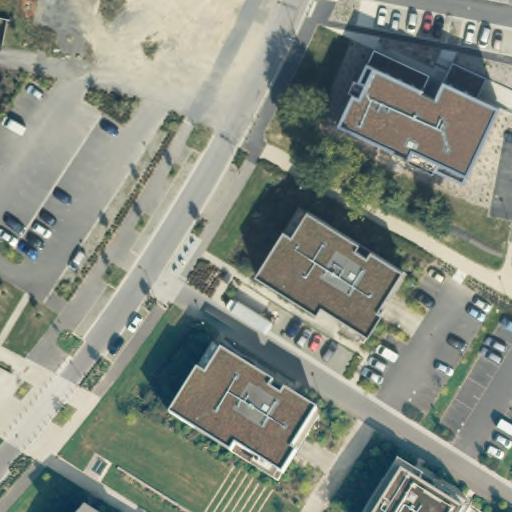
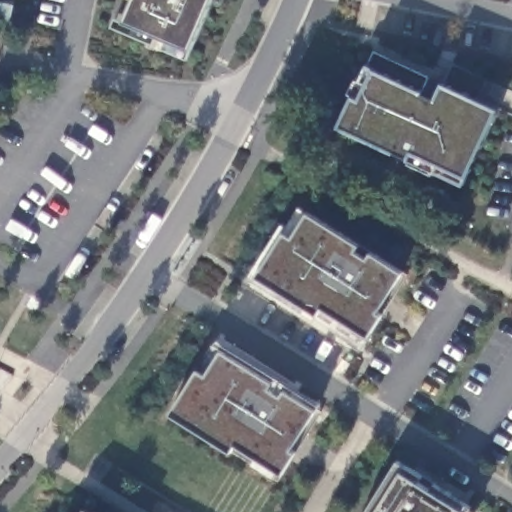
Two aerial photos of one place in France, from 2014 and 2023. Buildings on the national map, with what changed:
new [(190,47),(187,57),(111,26),(115,16),(125,20),(133,0),(210,0),(190,47)]
unchanged [(404,154),(339,123),(367,65),(434,97),(442,81),(494,106),(461,181),(404,154)]
unchanged [(255,275),(283,230),(291,236),(307,211),(403,271),(378,310),(382,313),(368,336),(321,306),(317,313),(309,308),(314,301),(285,283),(280,291),(255,275)]
unchanged [(221,348),(316,408),(292,448),(296,451),(282,473),(198,421),(194,428),(169,413),(197,368),(205,373),(221,348)]
unchanged [(467,512),(364,512),(397,459),(471,505),(467,512)]
unchanged [(99,512),(81,512),(87,504),(99,512)]

